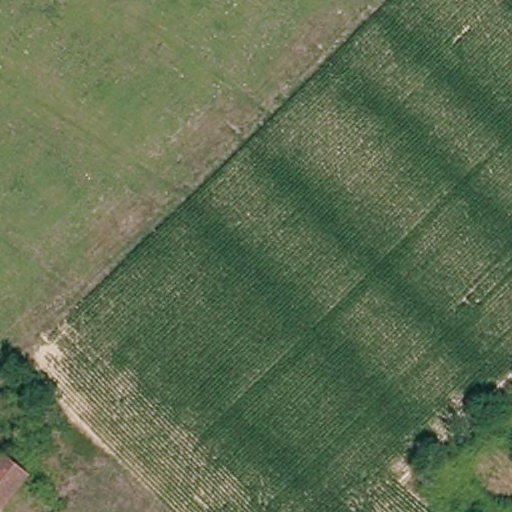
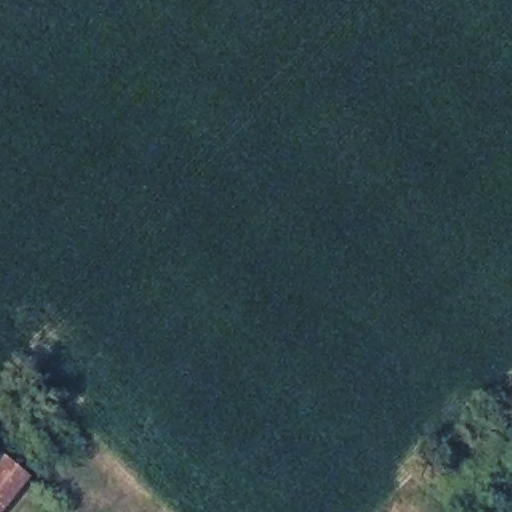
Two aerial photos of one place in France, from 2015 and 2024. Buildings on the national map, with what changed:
unchanged [(0,512),(0,466),(6,459),(29,478),(0,512)]

